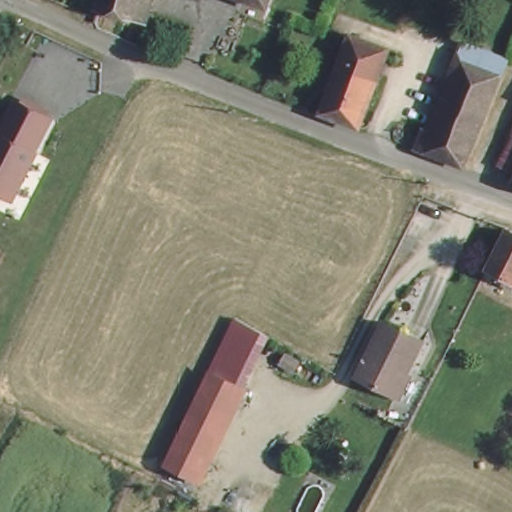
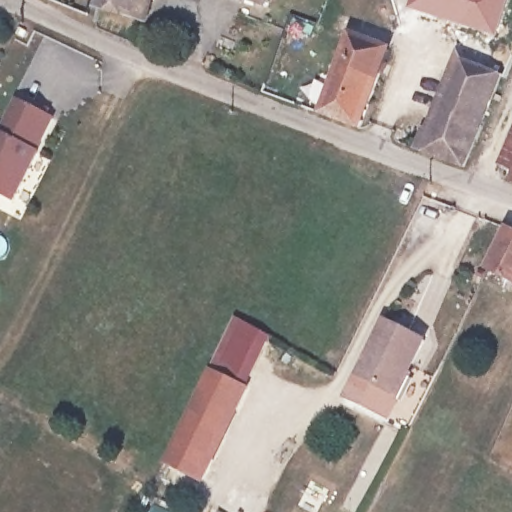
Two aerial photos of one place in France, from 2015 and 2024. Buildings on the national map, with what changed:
unchanged [(107,3),(107,0),(153,0),(149,16),(107,3)]
unchanged [(247,0),(267,0),(262,7),(247,0)]
unchanged [(275,0),(276,0),(276,1),(275,0)]
new [(508,0),(495,39),(408,11),(411,0),(508,0)]
unchanged [(355,40),(370,45),(387,52),(381,66),(357,127),(325,115),(349,54),(355,40)]
unchanged [(425,149),(464,54),(473,56),(477,45),(507,58),(463,163),(425,149)]
unchanged [(35,145),(38,146),(15,193),(0,185),(0,128),(1,128),(17,95),(52,111),(35,145)]
unchanged [(512,131),(512,167),(499,161),(512,131)]
unchanged [(490,266),(507,229),(512,231),(512,274),(505,271),(490,266)]
unchanged [(424,343),(394,396),(360,379),(389,325),(424,343)]
unchanged [(270,342),(251,385),(205,480),(173,463),(234,326),(270,342)]

